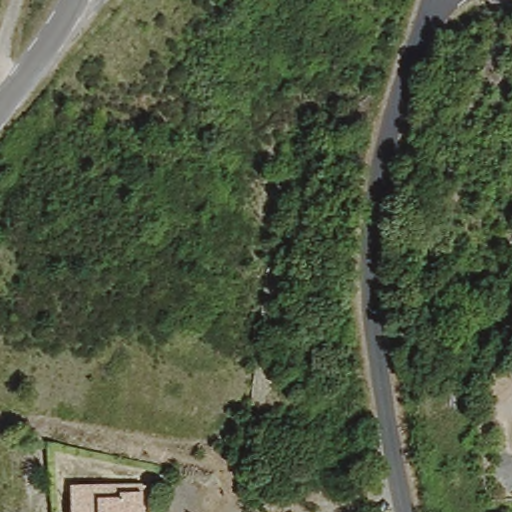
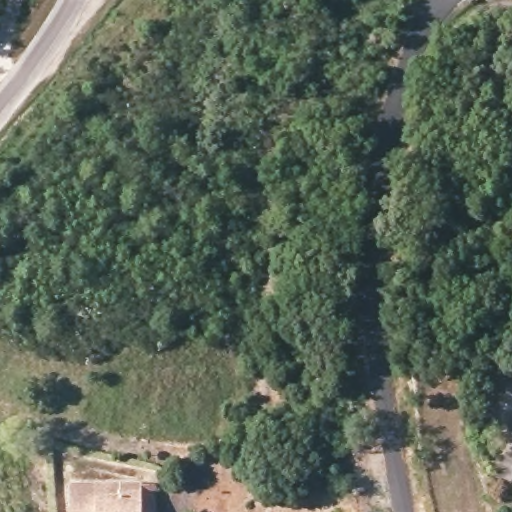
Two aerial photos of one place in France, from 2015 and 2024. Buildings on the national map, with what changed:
unchanged [(155,485),(156,512),(67,512),(67,487),(155,485)]

